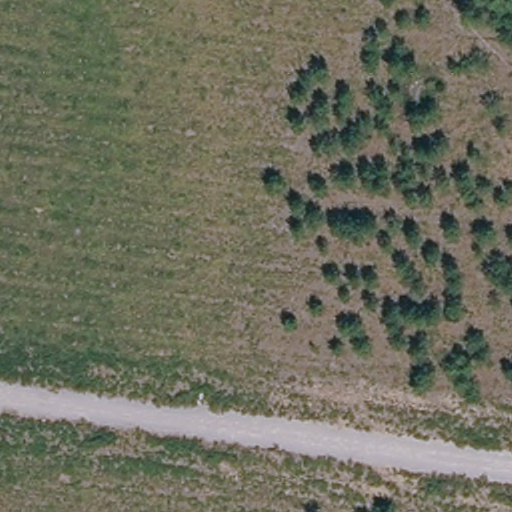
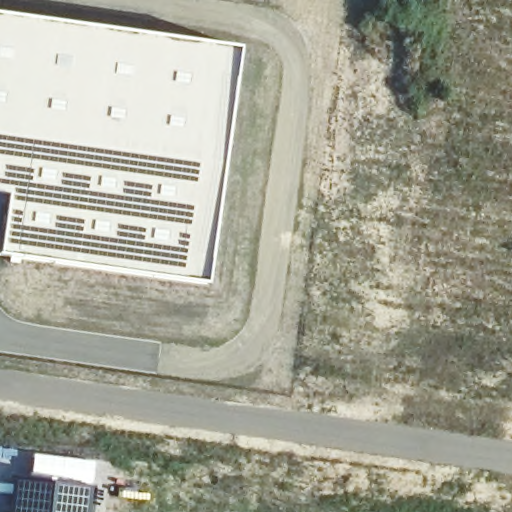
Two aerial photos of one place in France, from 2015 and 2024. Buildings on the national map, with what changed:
new [(241,47),(207,280),(0,253),(0,240),(7,193),(0,192),(0,12),(241,47)]
new [(34,451),(98,459),(96,483),(59,478),(30,477),(34,451)]
new [(30,477),(59,478),(96,483),(95,512),(11,512),(15,476),(30,477)]

